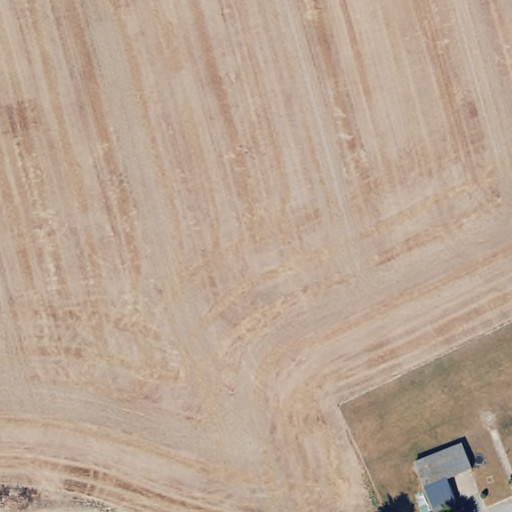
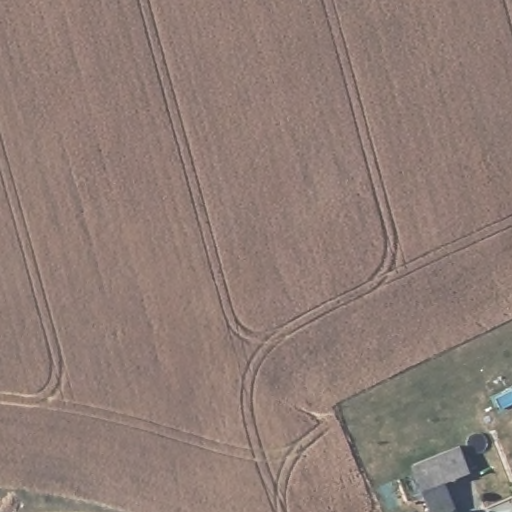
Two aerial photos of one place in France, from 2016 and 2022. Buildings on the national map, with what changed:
unchanged [(461,446),(472,470),(446,481),(456,502),(432,510),(412,464),(461,446)]

